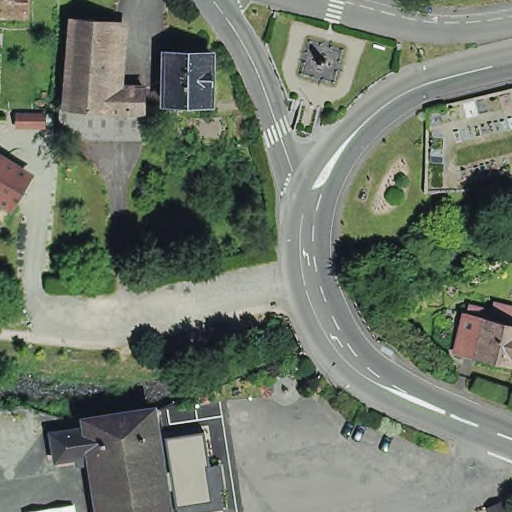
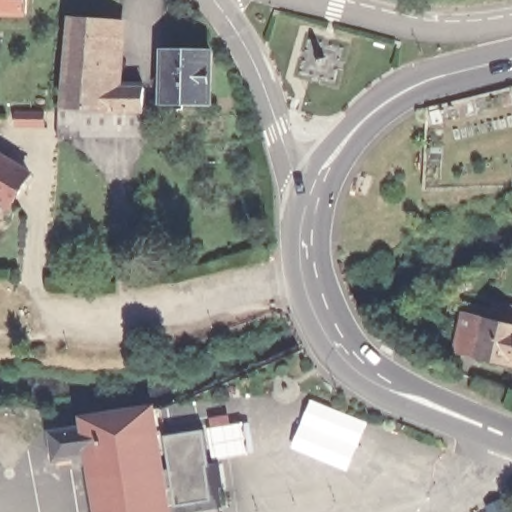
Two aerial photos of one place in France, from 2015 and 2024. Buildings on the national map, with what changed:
unchanged [(38,17),(0,16),(0,0),(38,0),(38,17)]
unchanged [(144,139),(58,139),(59,113),(59,107),(66,107),(72,19),(116,22),(111,89),(145,89),(145,111),(145,114),(144,139)]
unchanged [(206,104),(163,103),(160,103),(160,89),(152,88),(153,68),(160,69),(160,53),(206,55),(206,104)]
unchanged [(17,128),(17,114),(36,114),(45,114),(45,128),(36,128),(25,128),(17,128)]
unchanged [(32,192),(21,207),(14,203),(2,196),(0,198),(0,151),(37,173),(41,175),(32,192)]
unchanged [(2,196),(14,203),(4,222),(0,220),(0,198),(2,196)]
unchanged [(457,359),(466,320),(485,325),(512,331),(512,372),(476,363),(457,359)]
new [(310,399),(368,422),(347,472),(291,448),(310,399)]
new [(229,414),(231,424),(246,421),(254,454),(214,460),(208,417),(229,414)]
unchanged [(168,512),(99,512),(91,461),(56,467),(53,439),(87,433),(86,426),(154,415),(168,512)]
unchanged [(165,438),(204,432),(209,465),(221,464),(224,488),(221,489),(223,508),(201,512),(177,512),(173,489),(165,490),(163,472),(170,470),(165,438)]

